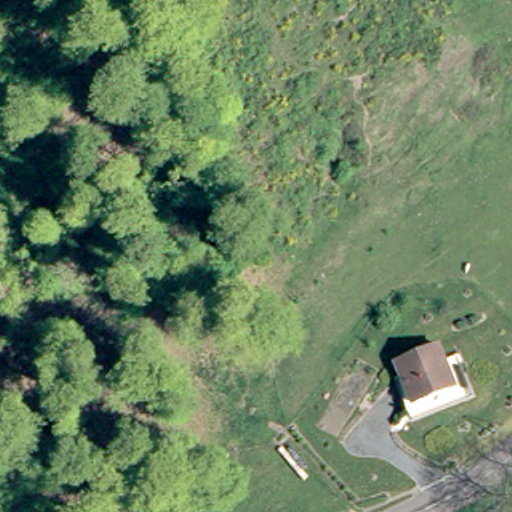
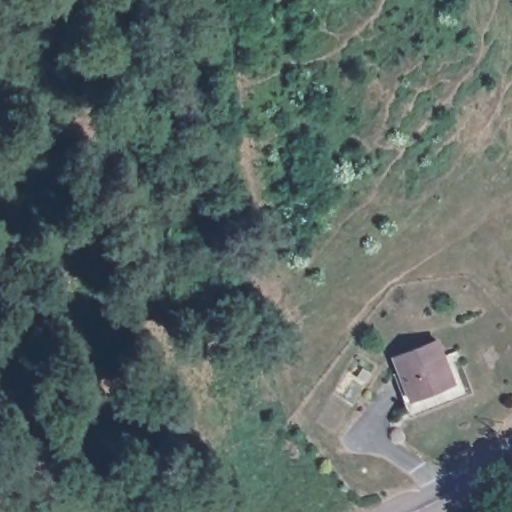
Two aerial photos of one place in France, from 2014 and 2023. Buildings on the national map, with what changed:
unchanged [(395,382),(407,376),(402,365),(447,340),(467,379),(422,404),(410,411),(395,382)]

